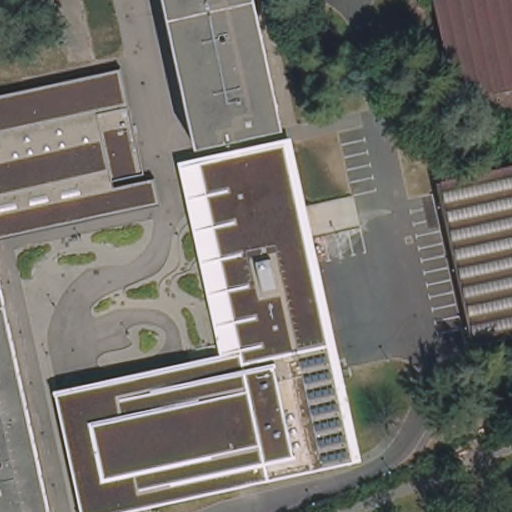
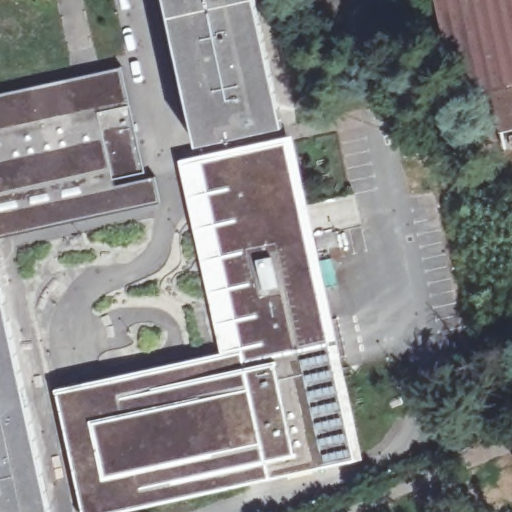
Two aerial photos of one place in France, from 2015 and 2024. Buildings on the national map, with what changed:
unchanged [(235,138),(198,146),(166,0),(256,0),(284,128),(235,138)]
unchanged [(437,0),(512,0),(512,88),(492,92),(459,99),(437,0)]
unchanged [(0,94),(119,70),(140,178),(152,176),(159,206),(0,238),(0,94)]
unchanged [(512,88),(512,131),(502,134),(492,92),(512,88)]
unchanged [(122,512),(81,512),(55,390),(223,355),(179,160),(292,138),(367,459),(122,512)]
demolished [(475,342),(439,181),(512,165),(512,333),(475,342)]
unchanged [(0,289),(48,512),(0,512),(0,289)]

